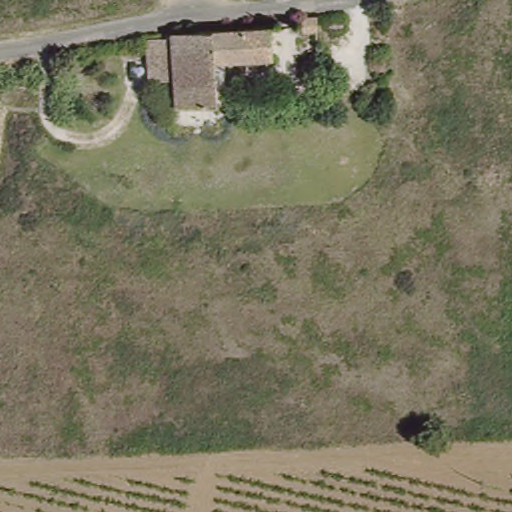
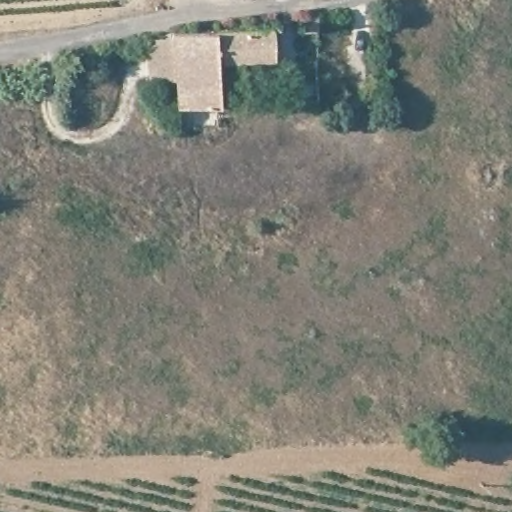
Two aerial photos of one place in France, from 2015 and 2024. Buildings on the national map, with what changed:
unchanged [(287,29),(287,19),(305,20),(305,36),(287,35),(287,29)]
unchanged [(174,31),(273,25),(274,58),(215,60),(215,85),(221,85),(222,106),(176,109),(175,106),(156,107),(156,104),(153,104),(154,75),(175,75),(174,31)]

